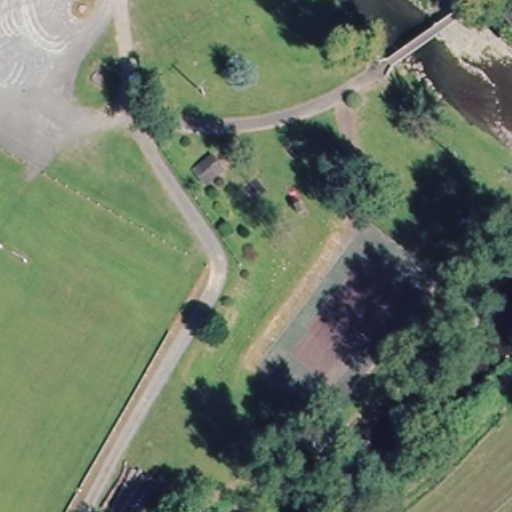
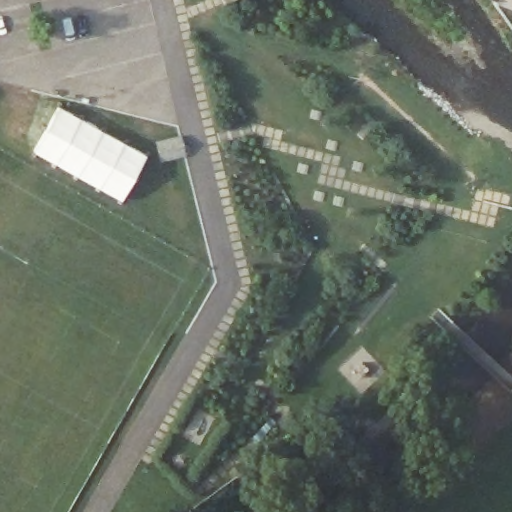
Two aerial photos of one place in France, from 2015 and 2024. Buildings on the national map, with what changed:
new [(146,156),(122,202),(33,151),(58,106),(146,156)]

